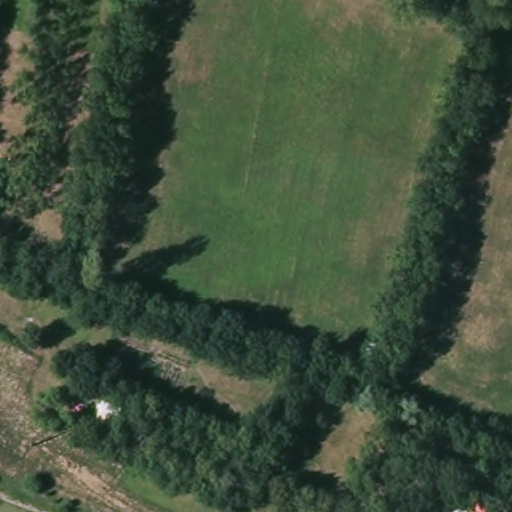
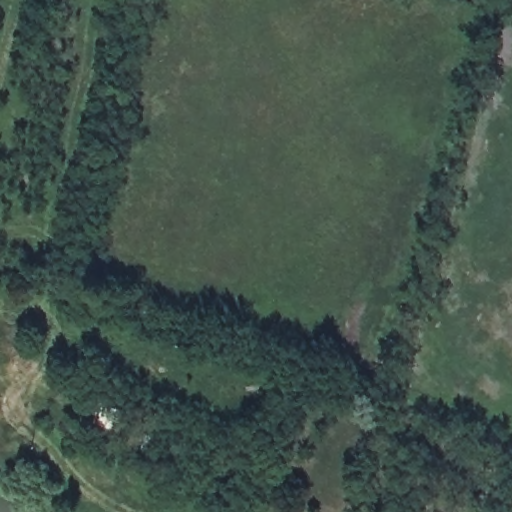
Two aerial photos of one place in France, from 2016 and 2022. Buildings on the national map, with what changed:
[]

